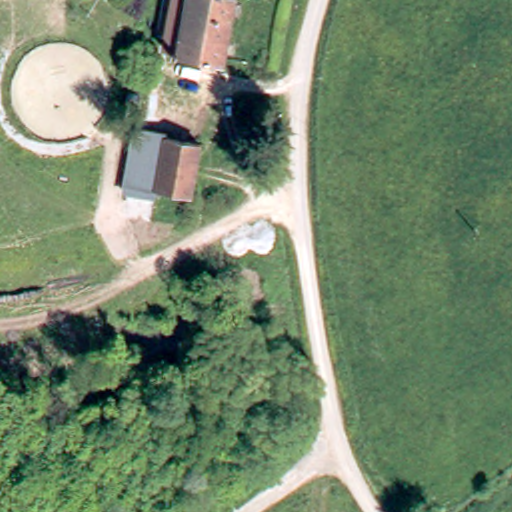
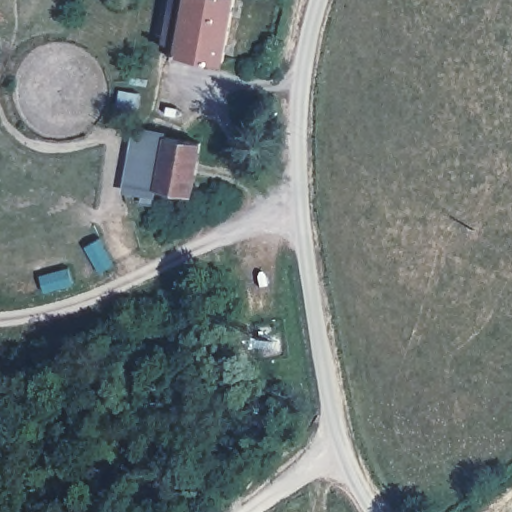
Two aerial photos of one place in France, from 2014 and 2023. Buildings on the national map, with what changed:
unchanged [(153,46),(159,0),(238,0),(230,58),(153,46)]
unchanged [(192,189),(137,180),(145,130),(203,139),(192,189)]

